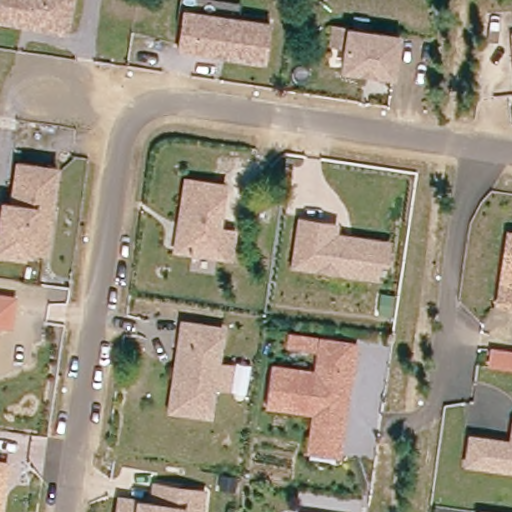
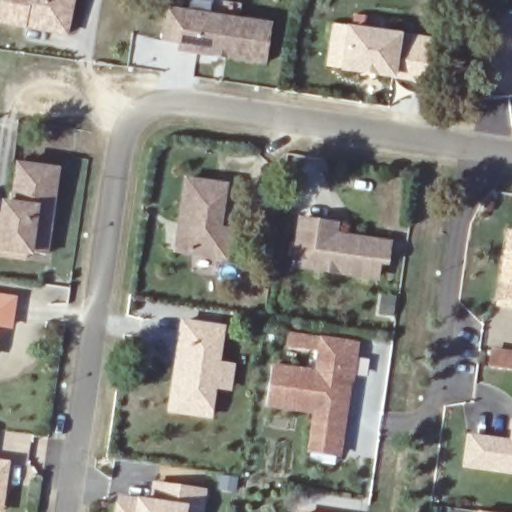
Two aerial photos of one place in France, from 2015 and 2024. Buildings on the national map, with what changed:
unchanged [(23,25),(0,21),(0,0),(73,0),(71,9),(66,34),(23,25)]
unchanged [(184,42),(179,41),(186,0),(199,0),(245,7),(243,24),(188,15),(184,42)]
unchanged [(269,67),(183,55),(184,42),(188,15),(243,24),(275,28),(269,67)]
unchanged [(342,67),(345,45),(330,43),(333,26),(348,28),(397,35),(391,75),(342,67)]
unchanged [(0,255),(0,215),(1,215),(3,202),(12,204),(18,164),(56,169),(45,255),(24,251),(24,258),(0,255)]
unchanged [(217,227),(233,229),(229,256),(175,249),(185,179),(223,184),(217,227)]
unchanged [(296,251),(302,214),(336,219),(335,230),(390,238),(386,265),(379,264),(376,280),(314,271),(294,268),(296,251)]
unchanged [(509,233),(512,233),(512,305),(499,303),(509,233)]
unchanged [(10,325),(0,324),(0,296),(14,298),(10,325)]
unchanged [(214,385),(210,415),(170,410),(183,321),(222,326),(217,363),(232,365),(229,387),(214,385)]
unchanged [(344,450),(313,446),(319,407),(270,400),(275,361),(320,368),(325,335),(360,340),(355,375),(346,435),(344,450)]
unchanged [(471,436),(512,441),(512,469),(467,462),(471,436)]
unchanged [(3,462),(11,463),(9,476),(7,492),(4,511),(0,511),(0,462),(3,462)]
unchanged [(131,495),(138,502),(146,496),(152,497),(154,479),(202,486),(199,512),(117,512),(120,492),(131,495)]
unchanged [(310,512),(303,512),(303,511),(310,512)]

